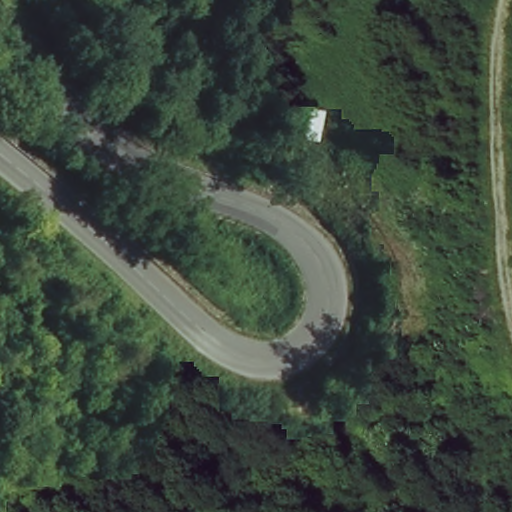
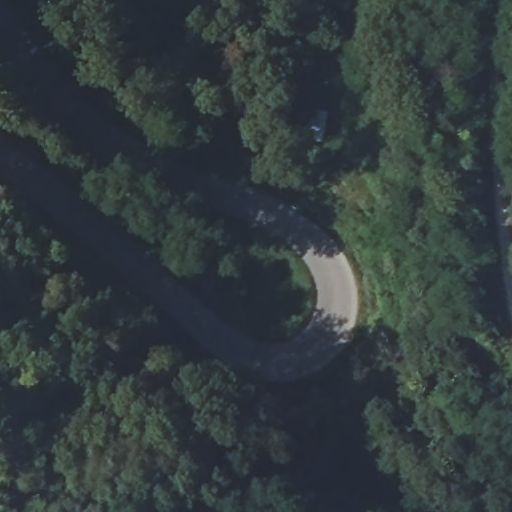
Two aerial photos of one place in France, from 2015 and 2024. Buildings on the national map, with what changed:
unchanged [(312,108),(327,110),(323,143),(305,143),(312,108)]

